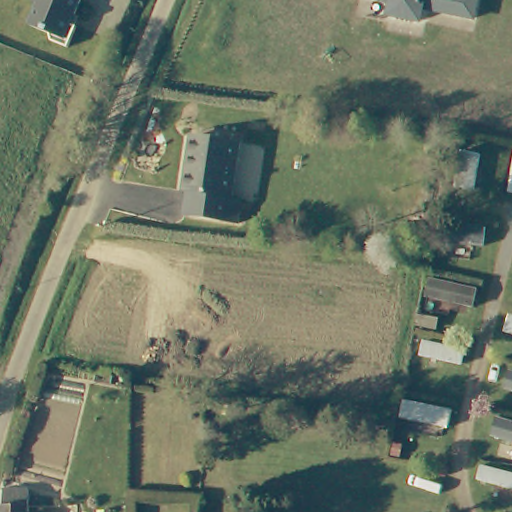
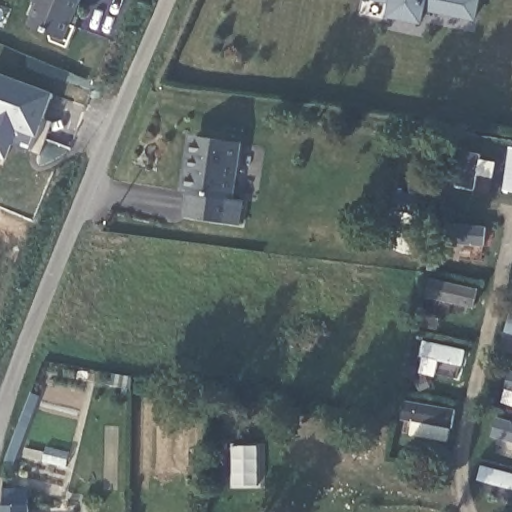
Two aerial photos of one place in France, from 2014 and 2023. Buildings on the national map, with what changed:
unchanged [(40,0),(83,0),(68,39),(30,28),(40,0)]
unchanged [(423,24),(387,18),(390,2),(382,0),(479,0),(475,21),(425,11),(423,24)]
new [(13,144),(7,159),(0,156),(0,74),(54,93),(37,136),(31,150),(13,144)]
unchanged [(234,142),(229,193),(241,194),(238,217),(183,210),(185,189),(182,189),(185,168),(188,169),(192,138),(234,142)]
unchanged [(0,501),(2,494),(26,494),(26,508),(26,512),(0,512),(0,501)]

